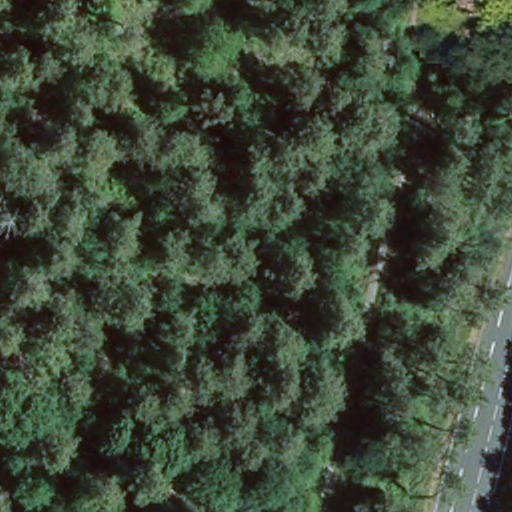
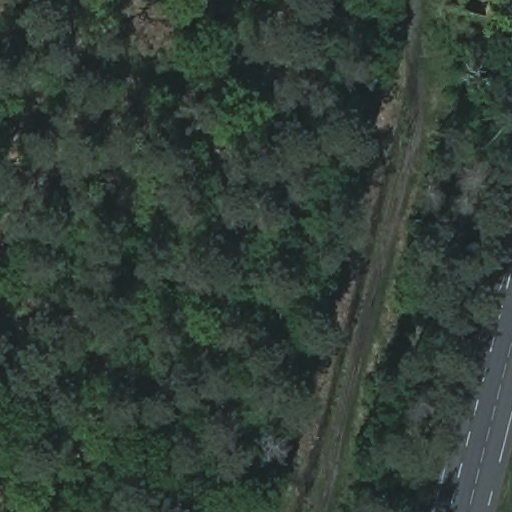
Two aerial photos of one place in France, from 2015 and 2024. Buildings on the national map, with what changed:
unchanged [(464,52),(472,29),(499,33),(494,56),(464,52)]

